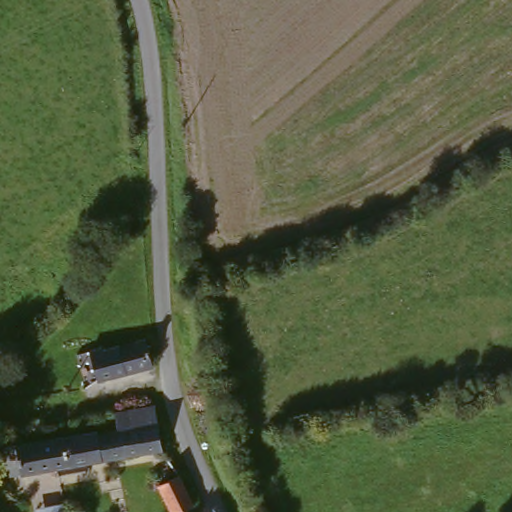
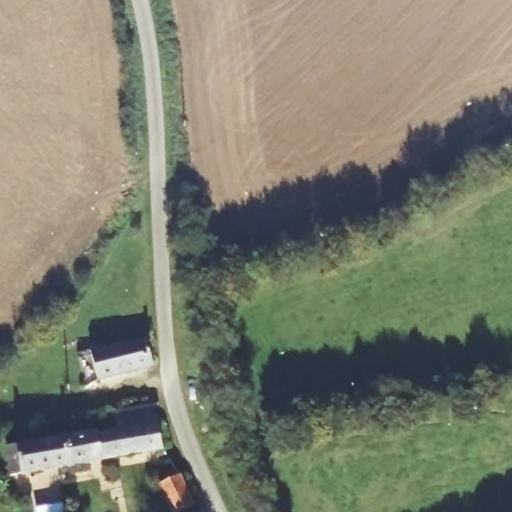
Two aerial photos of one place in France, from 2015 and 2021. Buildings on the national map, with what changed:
unchanged [(99,388),(92,363),(138,350),(142,376),(99,388)]
unchanged [(153,408),(157,427),(109,438),(97,441),(93,424),(122,416),(153,408)]
unchanged [(57,476),(15,487),(13,487),(3,490),(0,477),(0,463),(8,462),(97,441),(109,438),(157,427),(163,451),(89,470),(93,481),(73,487),(61,490),(57,476)]
unchanged [(166,512),(156,492),(176,482),(189,502),(193,510),(188,512),(166,512)]

